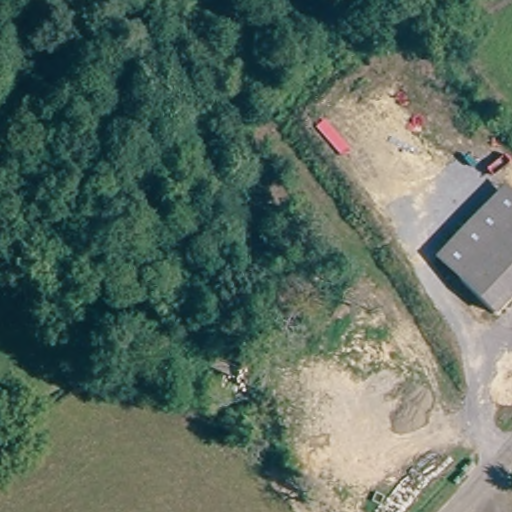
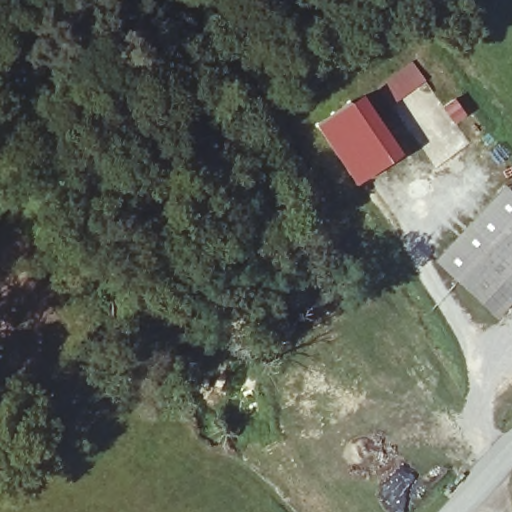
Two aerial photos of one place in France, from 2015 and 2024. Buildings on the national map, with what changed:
new [(413,60),(427,81),(396,102),(382,80),(413,60)]
new [(363,91),(403,152),(356,185),(314,124),(363,91)]
unchanged [(440,262),(506,187),(512,191),(512,214),(455,275),(440,262)]
unchanged [(455,275),(512,214),(512,286),(492,309),(455,275)]

